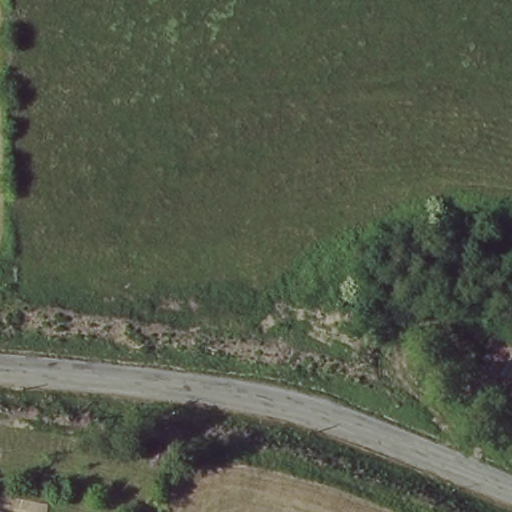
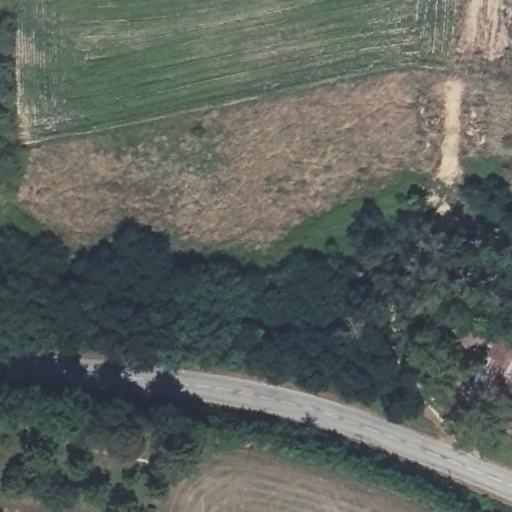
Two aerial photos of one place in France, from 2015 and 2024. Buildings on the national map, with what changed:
unchanged [(512,343),(512,409),(476,389),(505,339),(512,343)]

